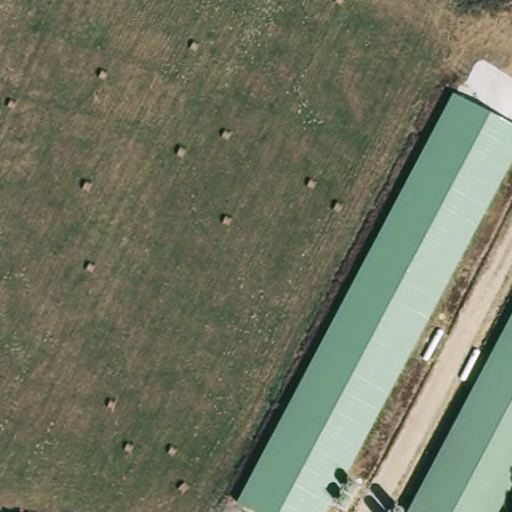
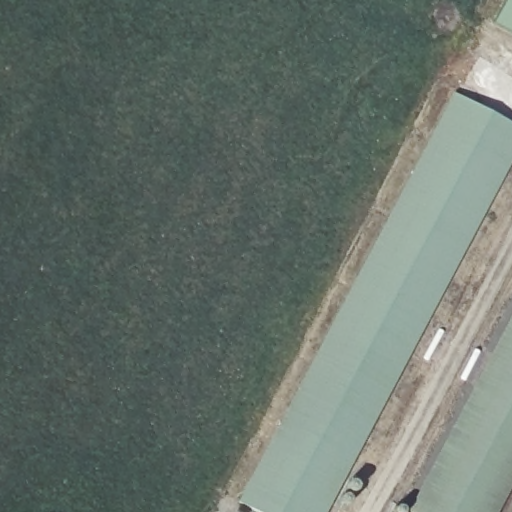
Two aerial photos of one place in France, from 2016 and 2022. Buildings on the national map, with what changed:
unchanged [(259,512),(236,499),(452,93),(512,124),(512,163),(328,512),(259,512)]
unchanged [(409,512),(512,319),(512,485),(498,512),(409,512)]

